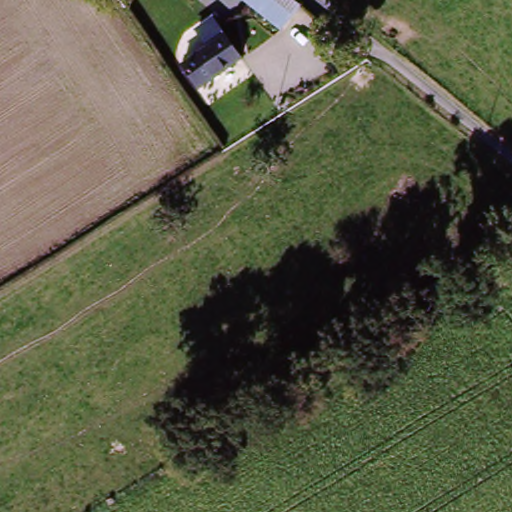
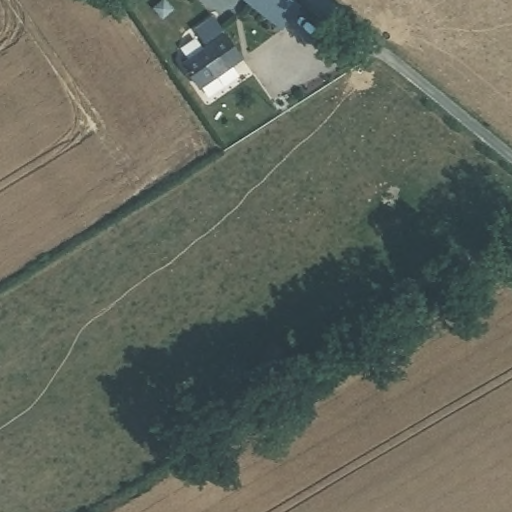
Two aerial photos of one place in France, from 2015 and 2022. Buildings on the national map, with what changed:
unchanged [(281,31),(239,0),(296,0),(300,3),(281,31)]
unchanged [(200,88),(182,62),(209,44),(197,26),(213,16),(243,59),(200,88)]

